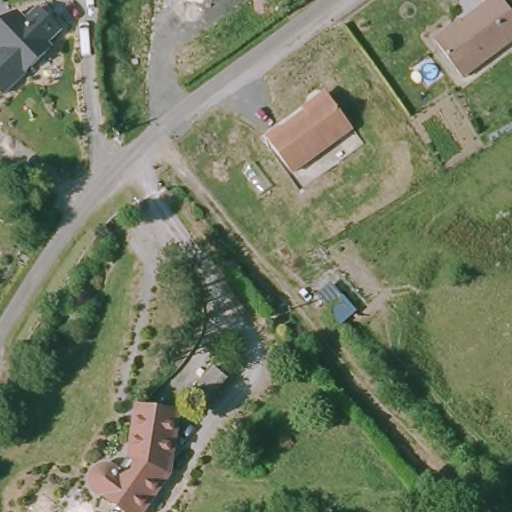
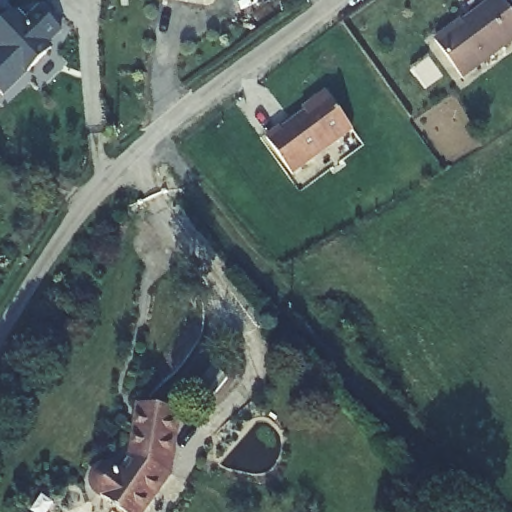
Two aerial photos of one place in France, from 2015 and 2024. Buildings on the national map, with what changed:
unchanged [(175,1),(174,0),(178,0),(175,1)]
unchanged [(510,16),(512,14),(512,39),(459,79),(432,43),(449,30),(451,31),(493,0),(498,0),(510,16)]
unchanged [(22,21),(37,8),(57,31),(42,46),(45,51),(0,95),(0,21),(15,12),(22,21)]
unchanged [(287,171),(262,136),(276,126),(278,128),(306,107),(306,101),(315,94),(322,95),(324,94),(349,126),(287,171)]
unchanged [(99,481),(106,473),(115,474),(122,477),(134,461),(144,410),(181,418),(170,480),(146,512),(128,512),(101,491),(99,481)]

